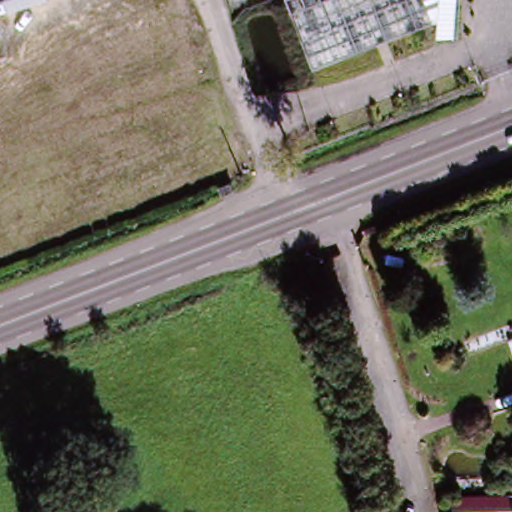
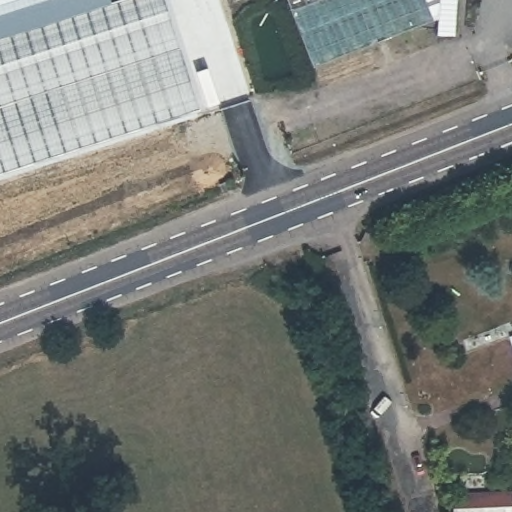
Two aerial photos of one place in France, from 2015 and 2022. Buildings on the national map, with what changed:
new [(118,0),(171,0),(207,113),(0,178),(0,0),(110,0),(111,2),(118,0)]
unchanged [(234,0),(231,1),(231,0),(234,0)]
unchanged [(293,0),(327,0),(327,1),(330,0),(445,0),(443,20),(318,68),(293,0)]
unchanged [(445,0),(462,0),(458,38),(442,37),(443,20),(445,0)]
unchanged [(452,492),(512,490),(512,512),(453,512),(452,492)]

